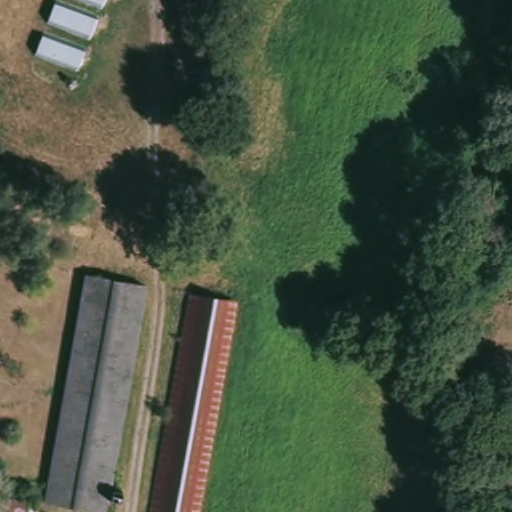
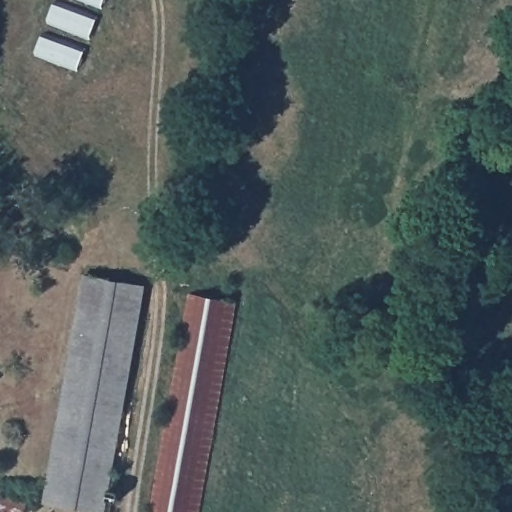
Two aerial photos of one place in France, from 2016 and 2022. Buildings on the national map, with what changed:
unchanged [(116,498),(114,508),(103,506),(102,512),(52,512),(40,510),(82,281),(140,293),(105,495),(116,498)]
unchanged [(145,512),(185,286),(231,294),(192,512),(145,512)]
unchanged [(15,512),(3,509),(6,493),(34,500),(30,512),(15,512)]

